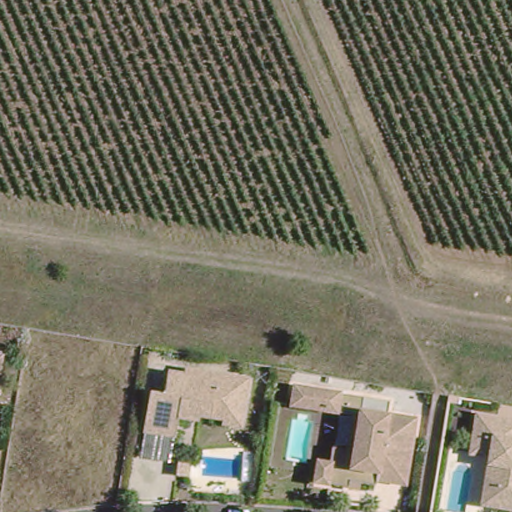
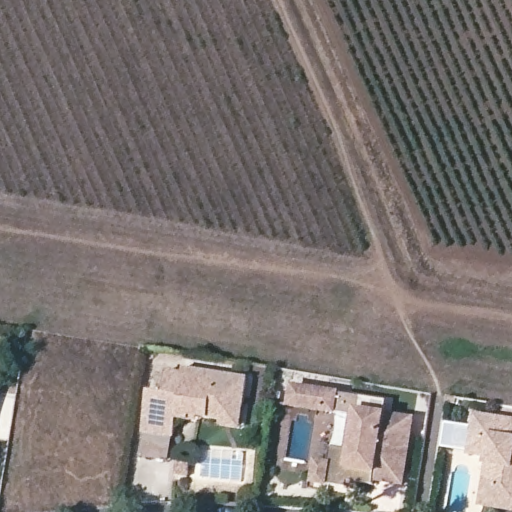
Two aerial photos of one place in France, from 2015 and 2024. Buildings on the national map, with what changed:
unchanged [(223,413),(199,410),(198,415),(190,413),(178,412),(175,430),(143,425),(150,382),(165,385),(168,365),(184,367),(185,362),(249,372),(244,401),(241,422),(221,418),(222,413),(223,413)]
unchanged [(315,475),(317,453),(329,456),(331,439),(348,442),(353,407),(334,404),(322,402),(291,397),(294,378),(389,393),(387,407),(415,411),(404,477),(377,472),(376,477),(360,475),(359,482),(348,480),(315,475)]
unchanged [(494,457),(484,455),(485,447),(467,444),(469,427),(472,407),(512,414),(512,426),(511,432),(512,432),(512,438),(511,441),(512,441),(512,501),(487,497),(494,457)]

